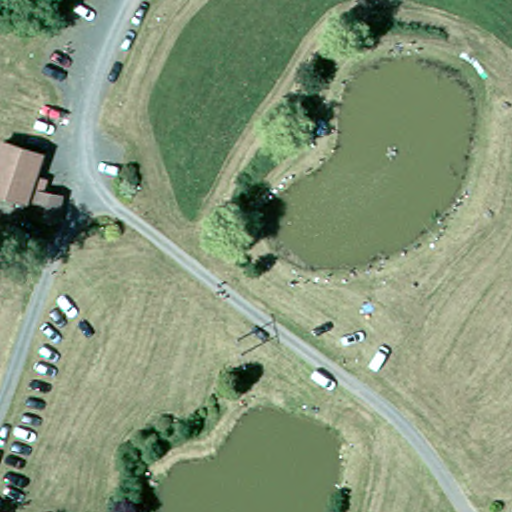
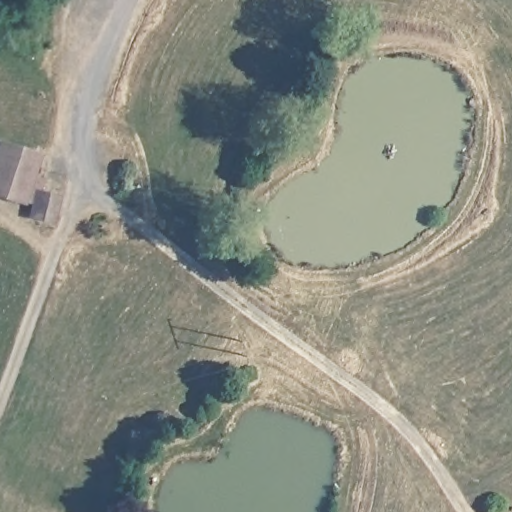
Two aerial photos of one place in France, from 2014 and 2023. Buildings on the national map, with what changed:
unchanged [(32,219),(34,206),(21,203),(20,204),(0,198),(0,146),(34,156),(28,178),(39,182),(36,192),(35,193),(55,196),(52,222),(32,219)]

